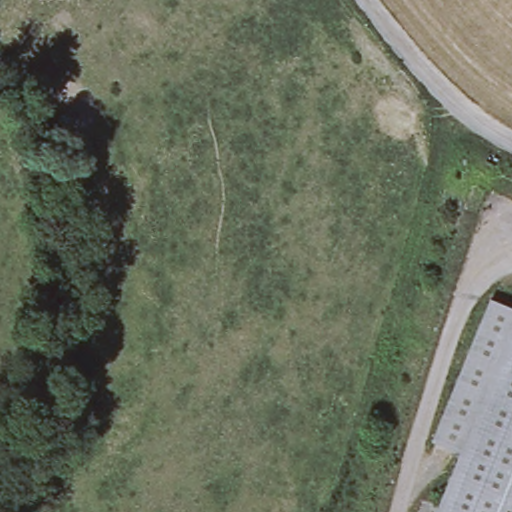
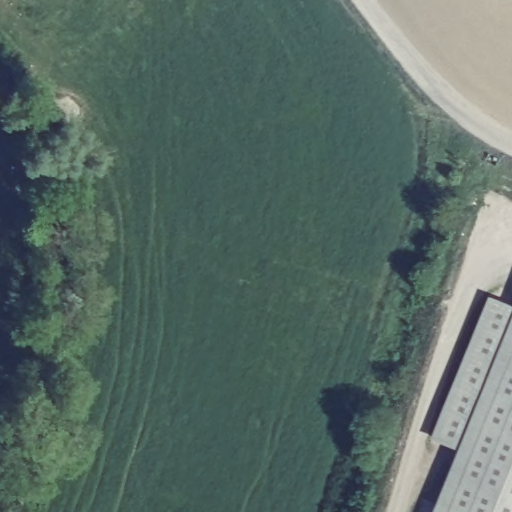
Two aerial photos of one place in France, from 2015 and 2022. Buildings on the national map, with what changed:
unchanged [(461,449),(433,438),(489,300),(512,309),(512,323),(495,365),(461,449)]
unchanged [(512,323),(512,371),(495,365),(512,323)]
unchanged [(512,512),(435,512),(461,449),(495,365),(512,371),(512,512)]

